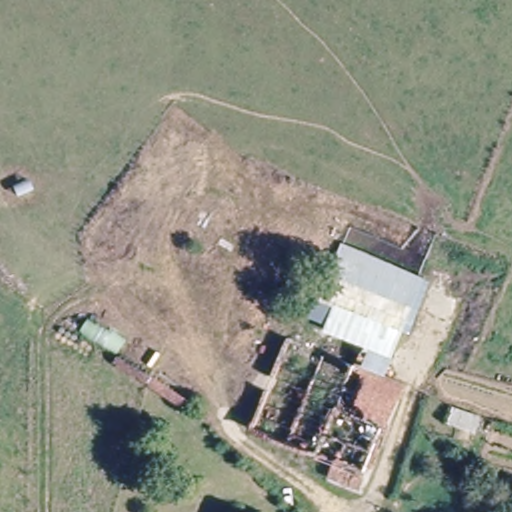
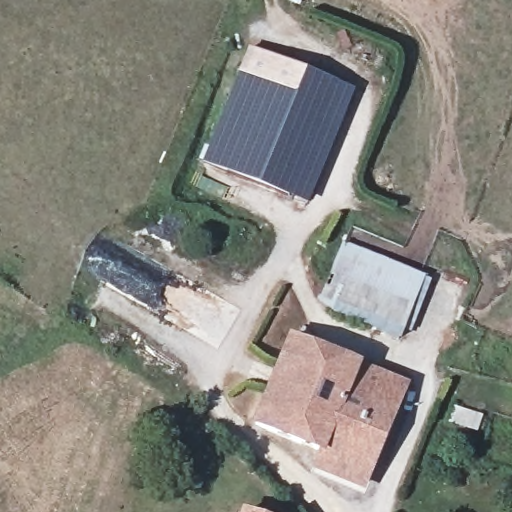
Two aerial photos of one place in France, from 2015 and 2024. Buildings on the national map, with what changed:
new [(202,162),(249,50),(353,92),(307,205),(202,162)]
new [(409,332),(402,330),(398,340),(331,312),(335,305),(317,299),(342,243),(431,280),(409,332)]
demolished [(287,329),(297,333),(330,267),(415,305),(383,372),(407,385),(365,487),(322,472),(332,458),(248,424),(287,329)]
new [(364,493),(312,471),(320,452),(253,427),(288,335),(360,363),(408,382),(364,493)]
unchanged [(253,507),(263,512),(251,512),(253,507)]

